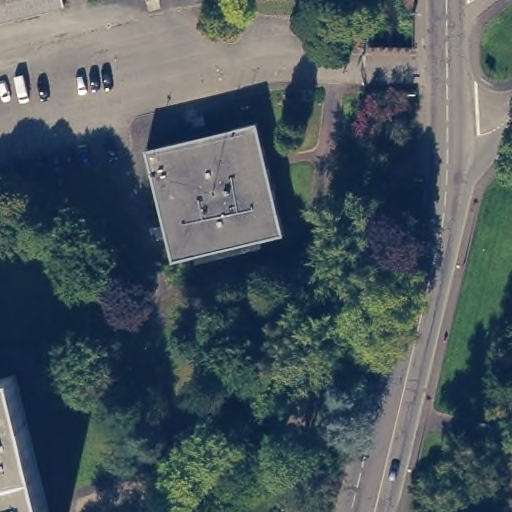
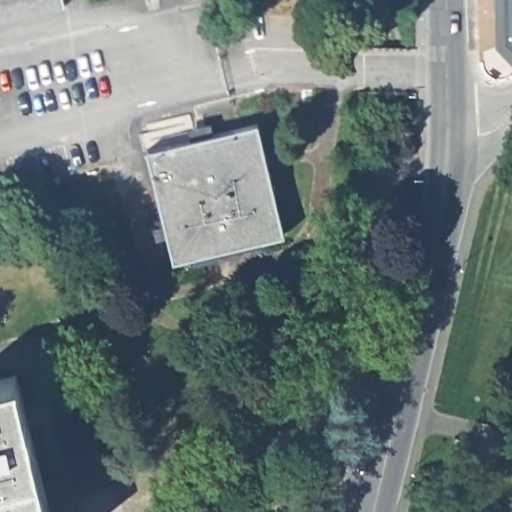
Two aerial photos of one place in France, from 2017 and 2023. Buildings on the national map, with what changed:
unchanged [(0,20),(0,0),(61,0),(63,6),(0,20)]
unchanged [(404,11),(403,0),(414,0),(413,11),(404,11)]
unchanged [(148,150),(146,144),(239,122),(258,118),(284,229),(174,256),(148,150)]
unchanged [(51,512),(0,512),(0,373),(16,369),(51,512)]

